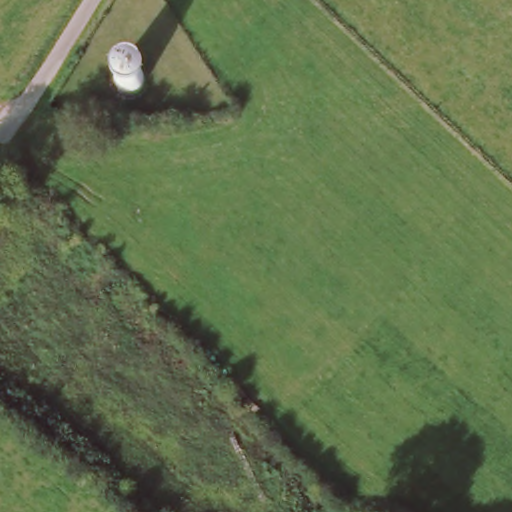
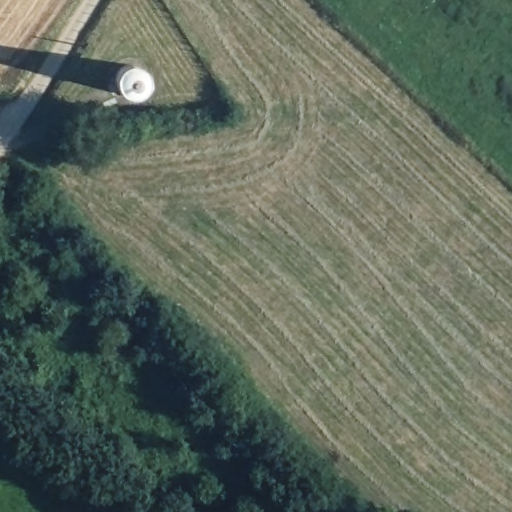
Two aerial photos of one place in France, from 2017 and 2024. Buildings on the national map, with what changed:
unchanged [(182,61),(187,55),(195,54),(200,58),(201,67),(196,73),(187,74),(182,68),(182,61)]

